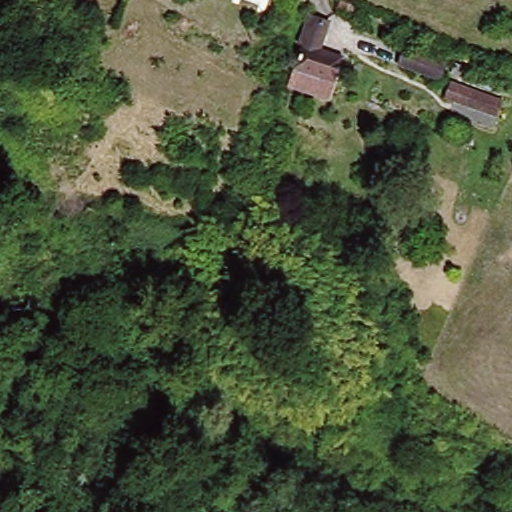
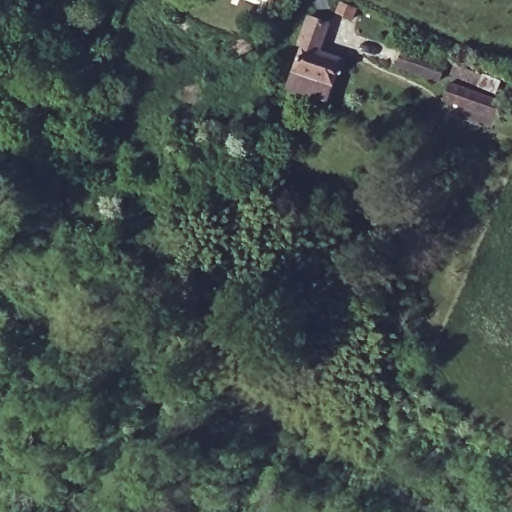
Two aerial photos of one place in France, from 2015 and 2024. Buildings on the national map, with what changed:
unchanged [(341,0),(352,4),(348,16),(333,10),(337,0),(341,0)]
unchanged [(335,56),(327,82),(291,70),(298,42),(306,21),(315,25),(308,47),(335,56)]
unchanged [(436,83),(398,68),(402,55),(439,69),(436,83)]
unchanged [(497,119),(444,100),(451,82),(503,101),(497,119)]

